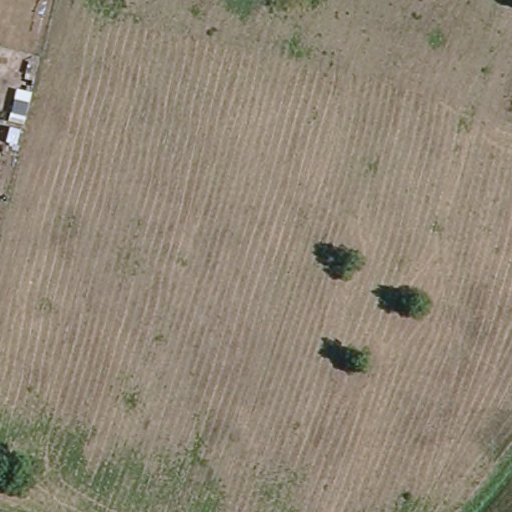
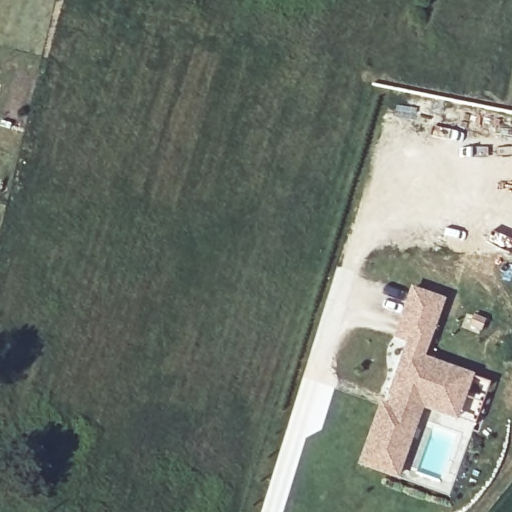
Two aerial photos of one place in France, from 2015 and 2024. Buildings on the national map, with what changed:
new [(356,465),(378,402),(386,404),(388,397),(385,396),(403,341),(391,338),(410,286),(445,298),(424,357),(473,373),(456,421),(423,409),(397,479),(356,465)]

